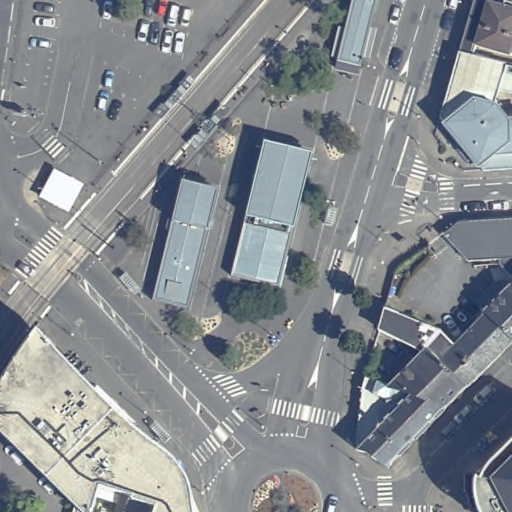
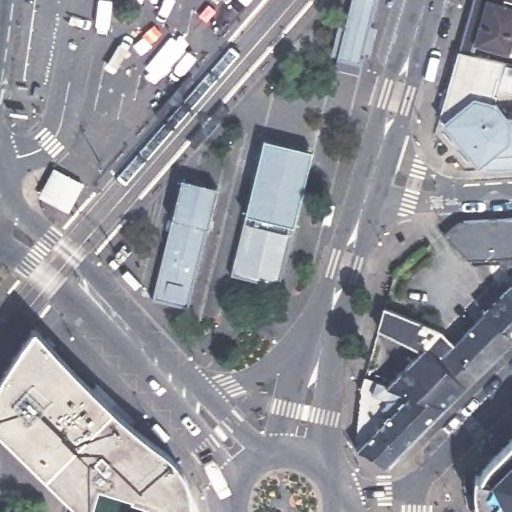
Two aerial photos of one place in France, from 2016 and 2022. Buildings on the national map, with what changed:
unchanged [(352,63),(338,60),(351,0),(376,0),(361,66),(352,63)]
unchanged [(476,61),(463,57),(481,0),(512,0),(512,60),(480,51),(476,61)]
unchanged [(511,124),(512,123),(512,174),(487,175),(445,122),(463,57),(476,61),(512,70),(512,96),(502,94),(497,109),(511,124)]
unchanged [(255,181),(261,157),(261,155),(265,142),(310,152),(306,168),(282,270),(278,288),(232,277),(241,239),(255,181)]
unchanged [(165,241),(170,220),(179,187),(180,182),(196,185),(216,190),(204,240),(187,310),(151,302),(165,241)]
unchanged [(503,262),(471,263),(446,239),(464,226),(512,222),(512,277),(503,269),(503,262)]
unchanged [(512,350),(470,391),(435,360),(445,337),(458,349),(484,324),(480,319),(486,312),(477,305),(496,285),(502,291),(509,285),(512,287),(512,350)]
unchanged [(383,333),(390,312),(445,337),(435,360),(470,391),(447,413),(413,396),(395,387),(415,347),(383,333)]
unchanged [(134,502),(134,501),(104,491),(98,512),(78,512),(79,509),(0,433),(0,392),(16,358),(34,335),(40,327),(82,374),(175,460),(180,467),(194,485),(196,490),(200,512),(131,512),(134,502)]
unchanged [(413,396),(447,413),(388,471),(360,453),(413,396)]
unchanged [(485,509),(483,503),(481,493),(480,484),(481,477),(482,472),(512,443),(512,512),(487,512),(485,509)]

